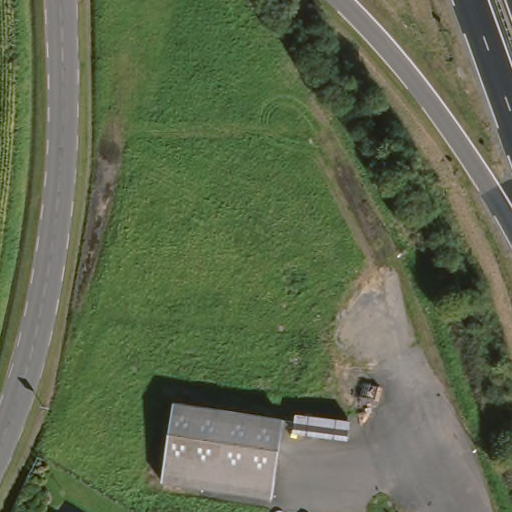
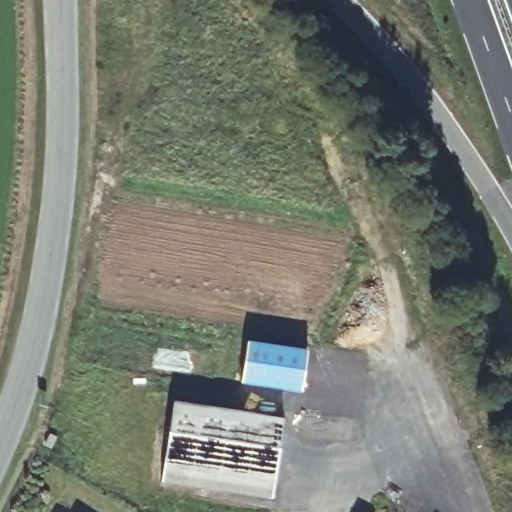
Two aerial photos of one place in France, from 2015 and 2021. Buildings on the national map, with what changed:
new [(244,341),(304,350),(299,390),(238,382),(244,341)]
unchanged [(281,418),(270,498),(158,482),(168,403),(281,418)]

